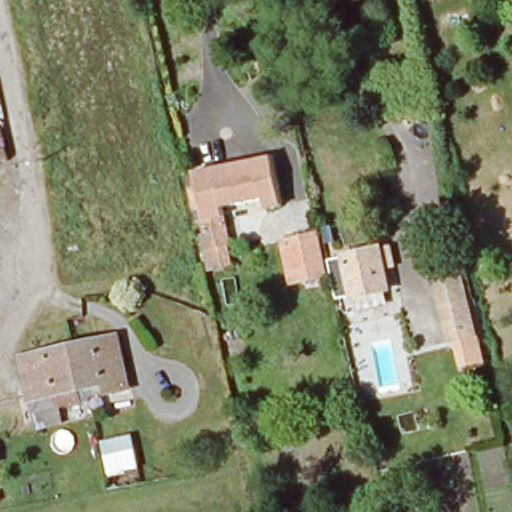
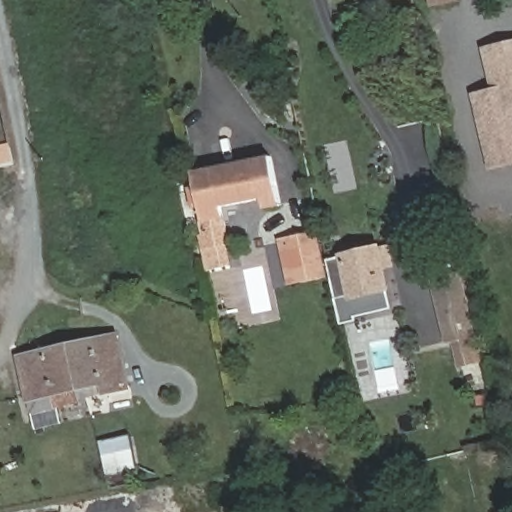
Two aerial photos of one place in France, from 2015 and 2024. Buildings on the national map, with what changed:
unchanged [(427,0),(438,0),(427,2),(427,0)]
new [(490,171),(471,94),(492,89),(482,47),(505,42),(512,40),(512,166),(511,166),(490,171)]
unchanged [(201,236),(207,235),(195,175),(270,158),(280,202),(270,204),(266,190),(241,195),(241,200),(224,203),(233,243),(225,245),(229,265),(209,269),(201,236)]
unchanged [(278,240),(315,231),(327,280),(289,289),(278,240)]
unchanged [(346,256),(378,250),(387,290),(354,296),(346,256)]
unchanged [(488,365),(470,370),(462,344),(446,346),(430,282),(462,273),(479,335),(488,365)]
unchanged [(54,407),(51,392),(27,397),(18,355),(114,336),(125,389),(105,393),(104,382),(77,387),(80,402),(54,407)]

